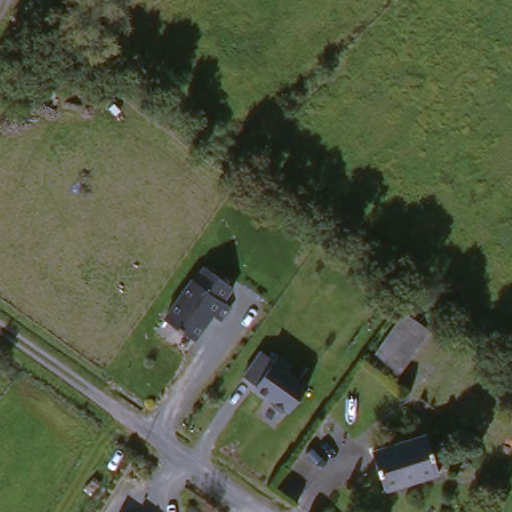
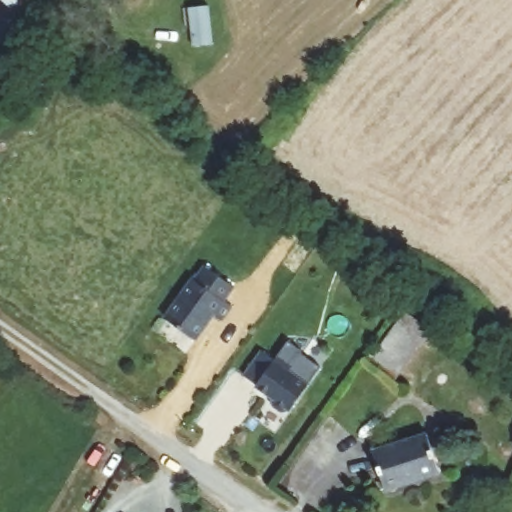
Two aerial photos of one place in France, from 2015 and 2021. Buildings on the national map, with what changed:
unchanged [(227,301),(234,306),(224,320),(217,314),(198,339),(169,317),(197,278),(199,280),(209,267),(236,288),(227,301)]
unchanged [(411,304),(441,329),(405,373),(376,349),(411,304)]
unchanged [(289,407),(287,406),(285,408),(280,409),(272,403),(271,398),(272,396),(255,383),(256,382),(243,372),(260,348),(273,357),(277,352),(291,362),(287,367),(307,382),(289,407)]
unchanged [(427,434),(438,470),(384,486),(373,450),(427,434)]

